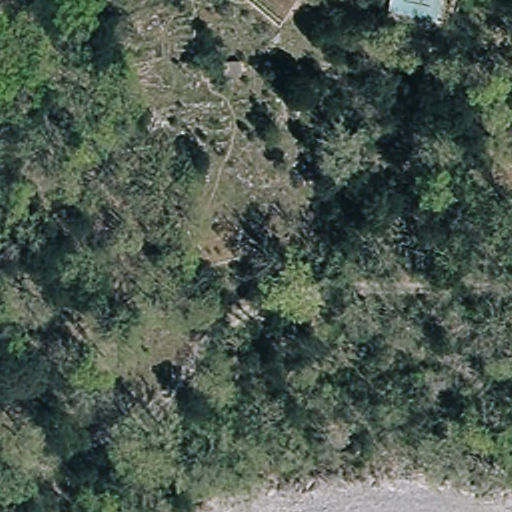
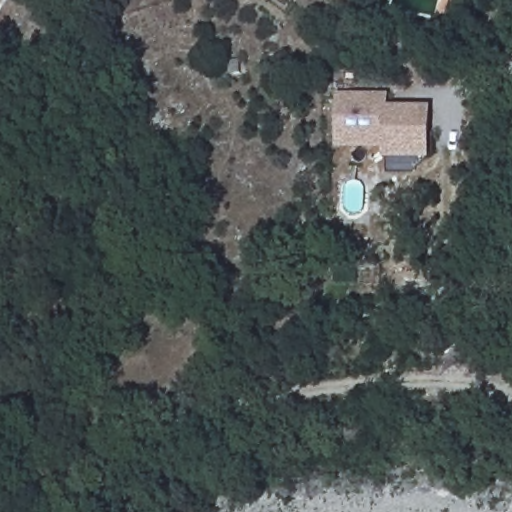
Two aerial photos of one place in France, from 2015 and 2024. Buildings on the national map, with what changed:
demolished [(0,0),(18,0),(19,0),(0,41),(0,0)]
new [(390,94),(389,106),(433,106),(432,160),(385,160),(385,148),(337,149),(338,94),(390,94)]

